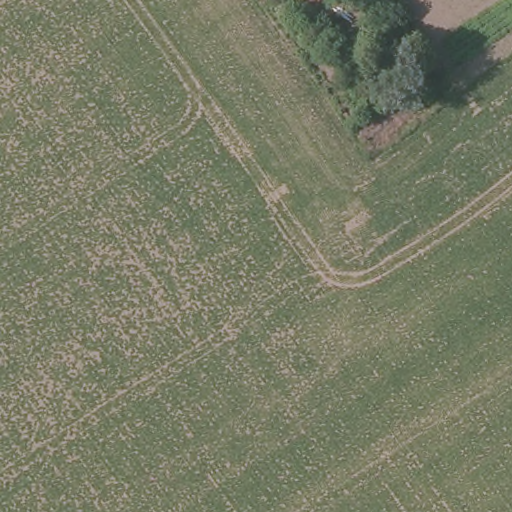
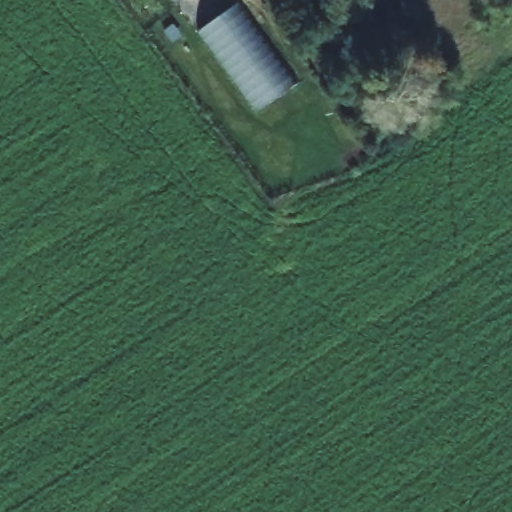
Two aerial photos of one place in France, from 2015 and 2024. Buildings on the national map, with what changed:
new [(239,0),(298,81),(256,113),(197,32),(239,0)]

